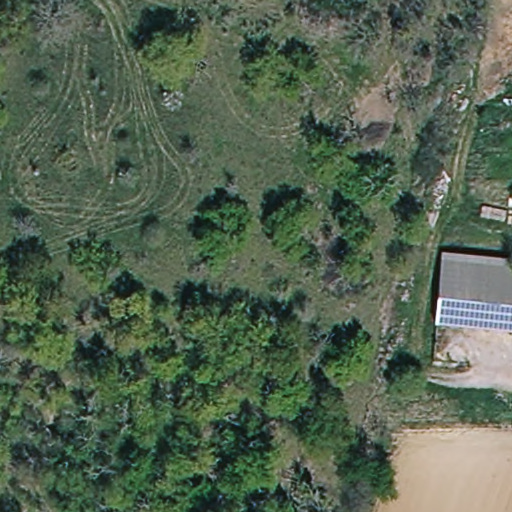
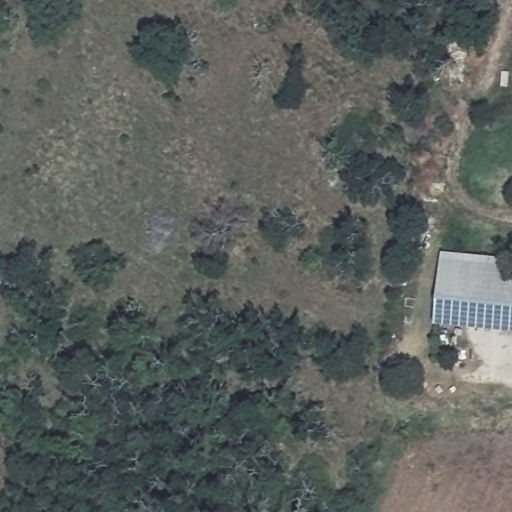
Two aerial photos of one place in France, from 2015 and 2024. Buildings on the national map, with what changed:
unchanged [(512,254),(512,325),(440,316),(450,246),(512,254)]

